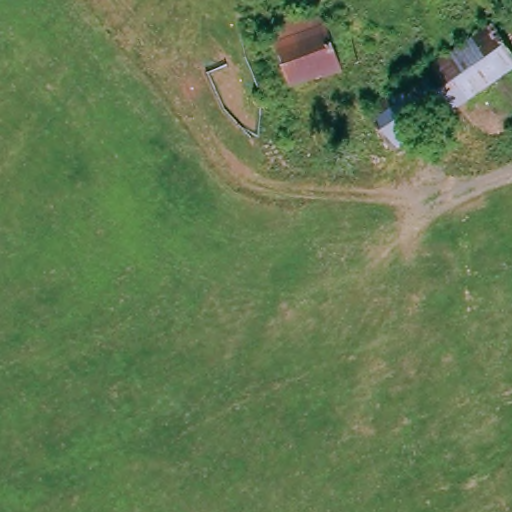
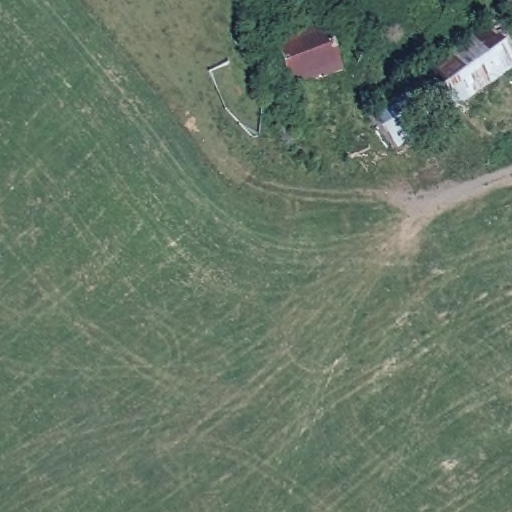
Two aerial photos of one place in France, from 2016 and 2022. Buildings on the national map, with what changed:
unchanged [(354,84),(304,99),(280,42),(329,24),(333,40),(338,38),(353,81),(354,84)]
unchanged [(394,99),(413,86),(498,29),(512,50),(512,73),(419,136),(394,153),(371,117),(394,99)]

